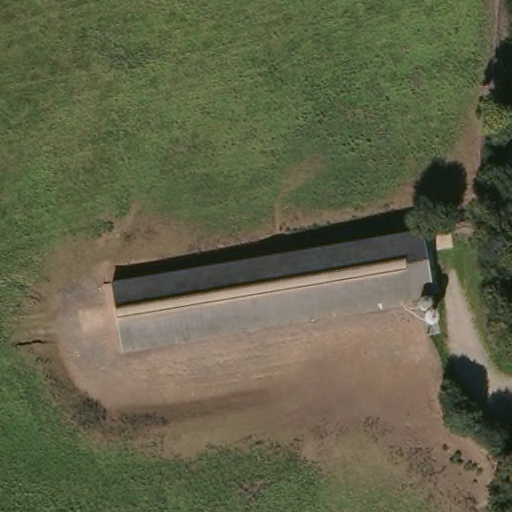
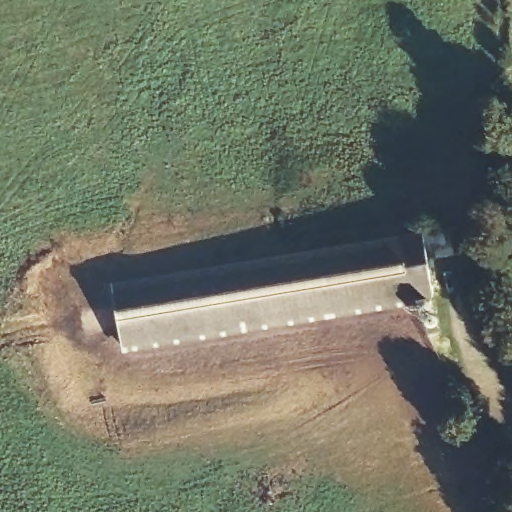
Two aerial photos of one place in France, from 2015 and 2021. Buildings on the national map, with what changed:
unchanged [(109,296),(422,232),(432,292),(121,357),(109,296)]

